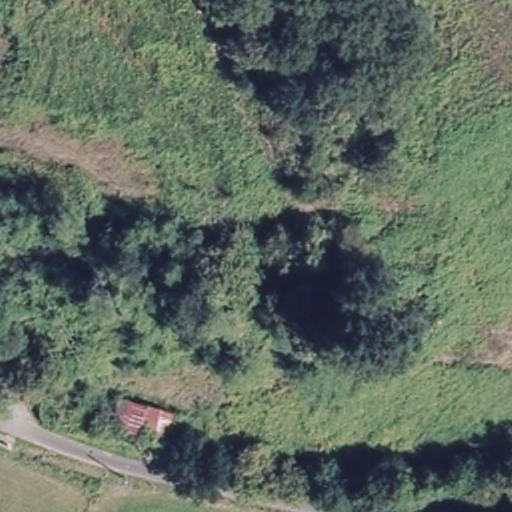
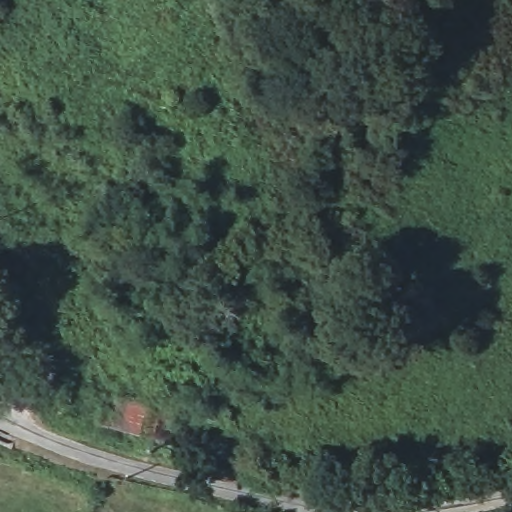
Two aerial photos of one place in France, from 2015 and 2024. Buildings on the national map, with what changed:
unchanged [(174,406),(172,425),(187,427),(182,443),(116,432),(125,397),(174,406)]

